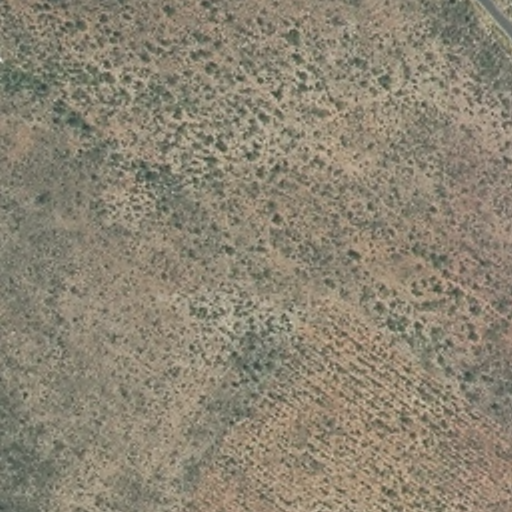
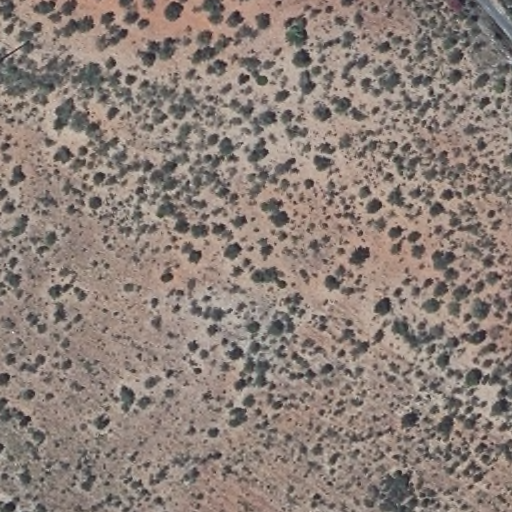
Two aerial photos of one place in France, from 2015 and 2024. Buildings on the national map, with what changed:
[]

